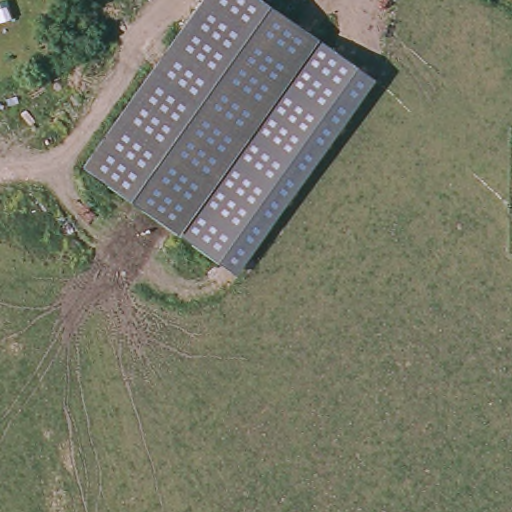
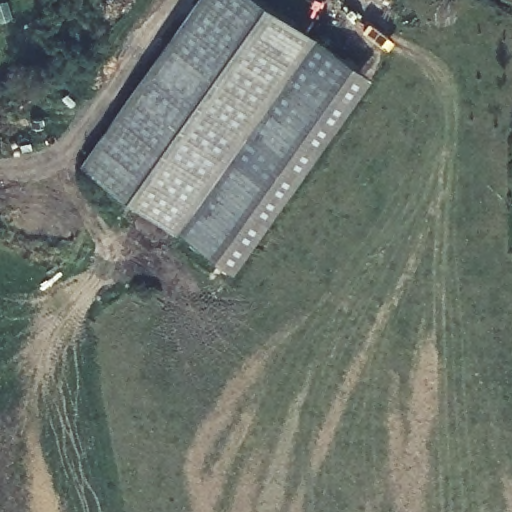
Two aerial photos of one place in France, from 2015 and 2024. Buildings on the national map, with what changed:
unchanged [(323,40),(186,228),(181,237),(82,168),(201,0),(265,0),(323,40)]
unchanged [(381,76),(239,270),(186,228),(328,34),(381,76)]

